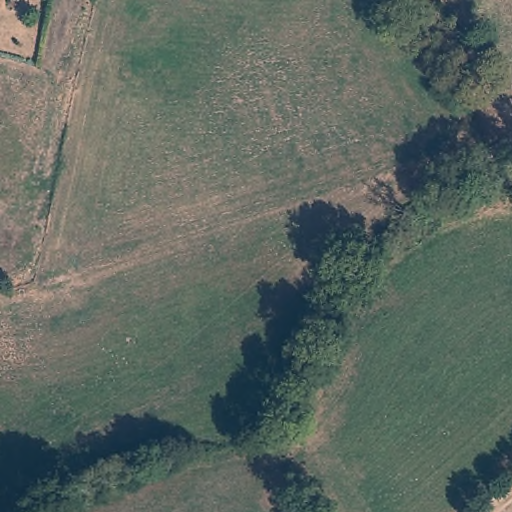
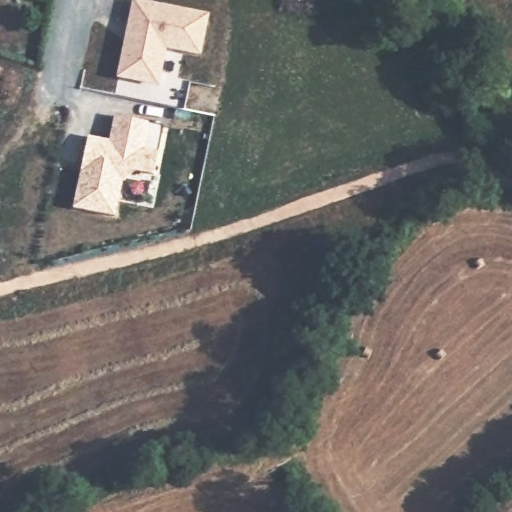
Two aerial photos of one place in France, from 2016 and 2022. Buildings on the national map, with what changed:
new [(132,0),(147,0),(210,14),(201,57),(167,49),(159,87),(116,79),(132,0)]
new [(163,127),(153,175),(135,171),(124,177),(116,218),(72,209),(88,135),(109,139),(114,115),(163,127)]

